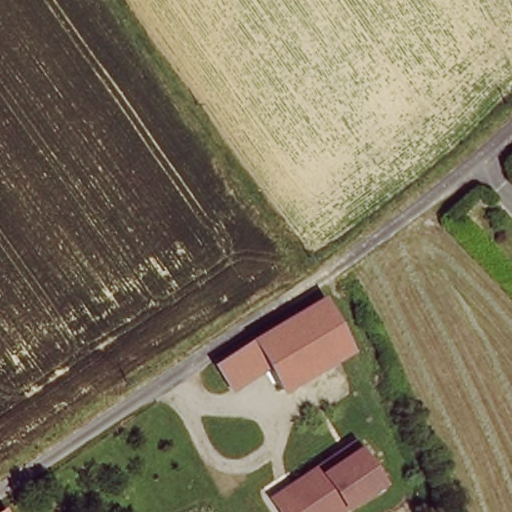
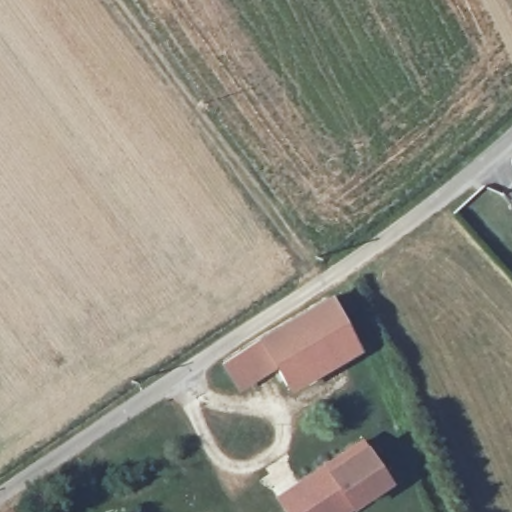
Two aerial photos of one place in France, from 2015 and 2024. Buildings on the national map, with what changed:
unchanged [(328,299),(352,349),(291,390),(277,367),(239,389),(225,364),(328,299)]
unchanged [(296,491),(338,460),(355,447),(360,453),(385,486),(350,512),(280,512),(276,506),(296,491)]
unchanged [(10,512),(3,512),(9,508),(10,512)]

